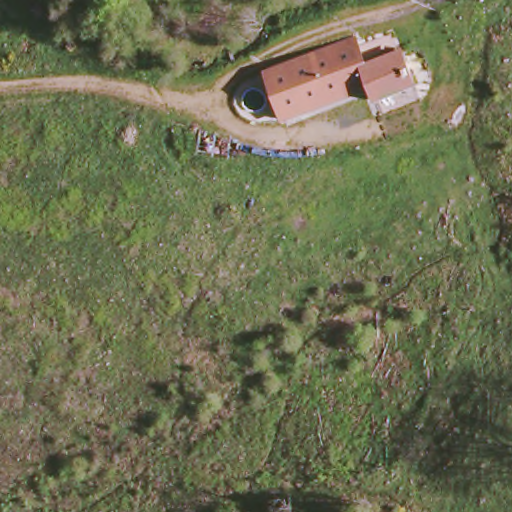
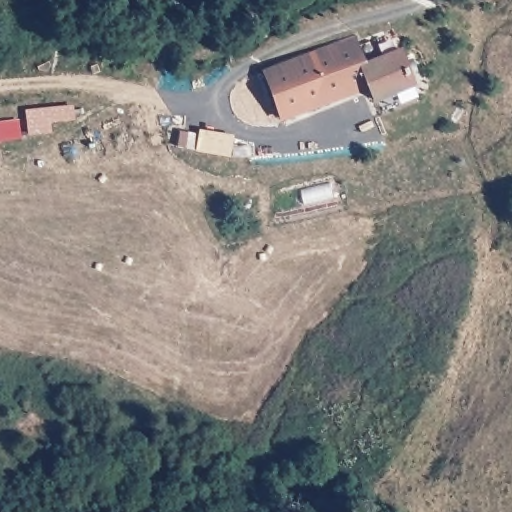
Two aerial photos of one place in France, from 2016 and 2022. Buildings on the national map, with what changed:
unchanged [(285,117),(265,74),(350,38),(361,62),(400,45),(415,78),(377,96),(368,81),(285,117)]

